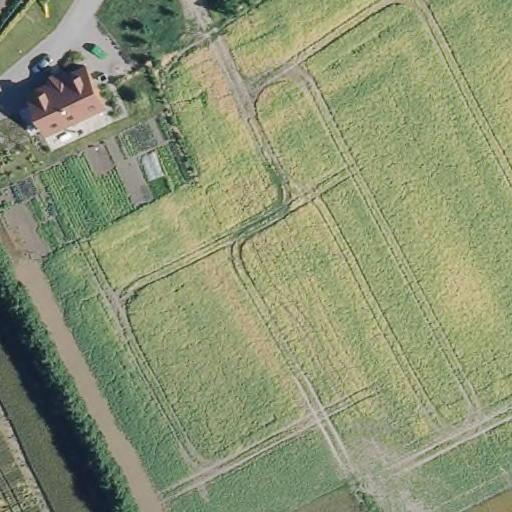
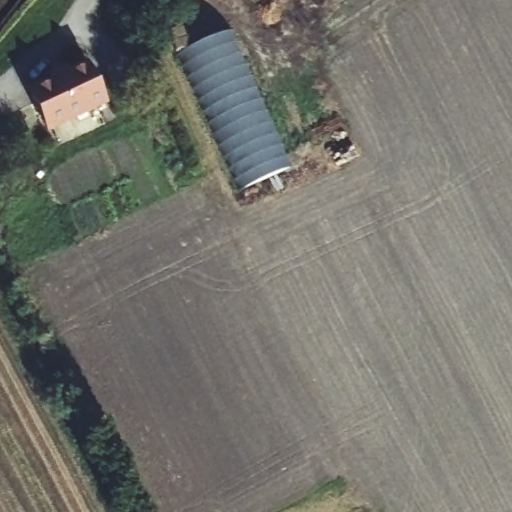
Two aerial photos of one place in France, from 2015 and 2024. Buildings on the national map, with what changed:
new [(287,173),(238,191),(183,49),(230,27),(287,173)]
unchanged [(52,75),(55,69),(65,63),(72,66),(86,60),(88,59),(98,77),(98,78),(107,97),(50,124),(31,85),(52,75)]

